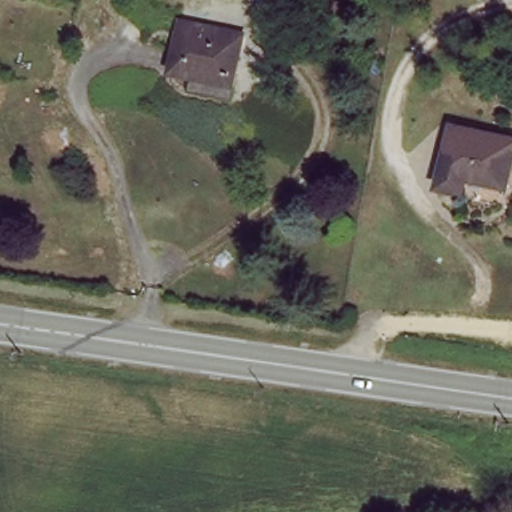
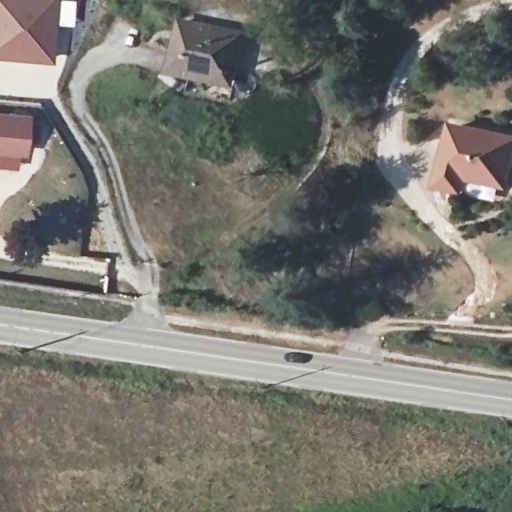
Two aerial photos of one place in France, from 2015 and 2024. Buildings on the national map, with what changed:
new [(0,0),(59,0),(53,64),(0,59),(0,0)]
unchanged [(182,25),(243,37),(240,56),(236,56),(232,82),(198,75),(196,80),(172,74),(182,25)]
new [(26,154),(0,152),(0,111),(30,114),(26,154)]
unchanged [(472,176),(467,194),(444,187),(456,125),(512,136),(512,185),(472,176)]

